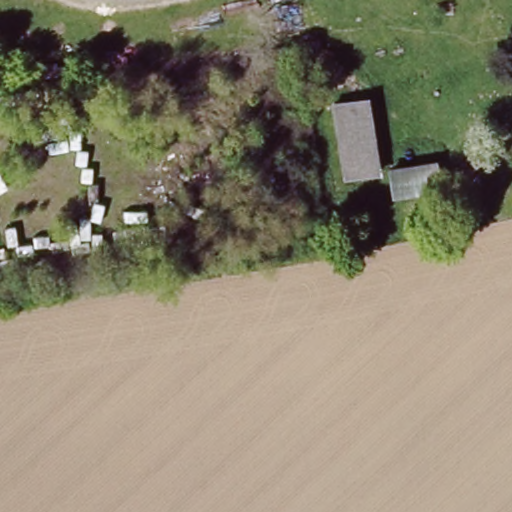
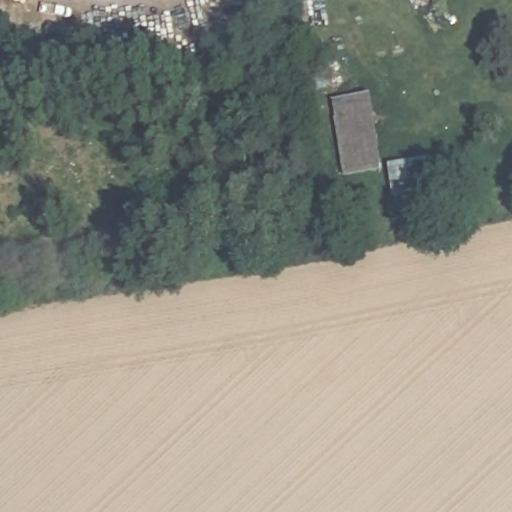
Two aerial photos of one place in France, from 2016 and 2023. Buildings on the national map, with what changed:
unchanged [(368,95),(380,171),(345,179),(330,102),(368,95)]
unchanged [(394,194),(388,162),(434,155),(437,183),(394,194)]

